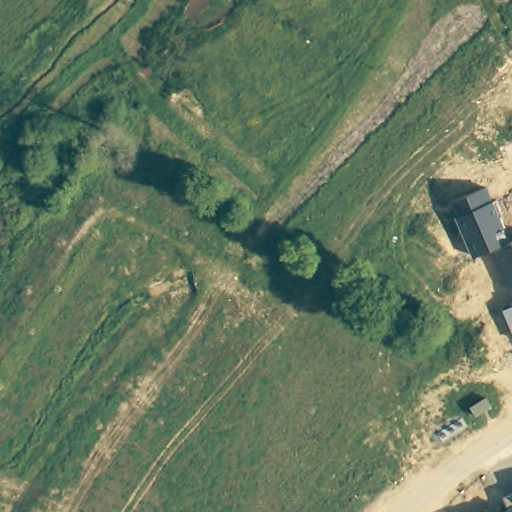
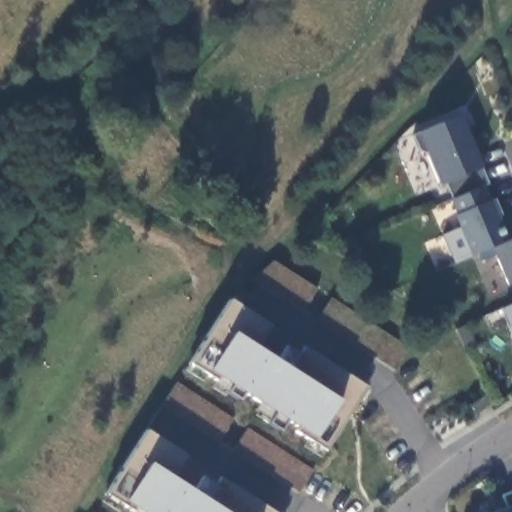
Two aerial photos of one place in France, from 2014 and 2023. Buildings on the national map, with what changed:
unchanged [(447,183),(440,185),(418,131),(461,115),(483,168),(479,169),(486,185),(452,199),(447,183)]
unchanged [(509,239),(512,238),(512,286),(511,286),(495,248),(473,257),(455,216),(459,214),(452,199),(486,185),(509,239)]
new [(229,299),(366,387),(325,451),(190,363),(229,299)]
unchanged [(512,330),(503,309),(512,305),(512,330)]
new [(271,512),(130,512),(105,496),(146,431),(271,512)]
unchanged [(501,494),(512,490),(512,512),(494,512),(506,506),(501,494)]

